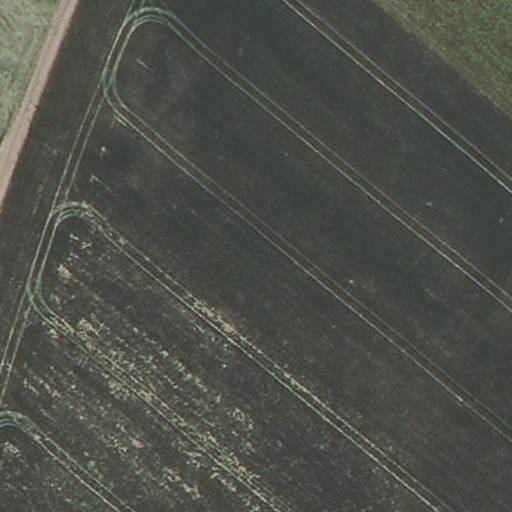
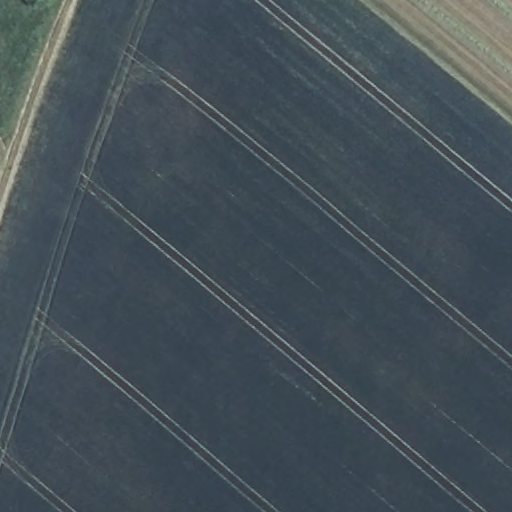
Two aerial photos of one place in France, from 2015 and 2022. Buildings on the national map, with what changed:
[]

